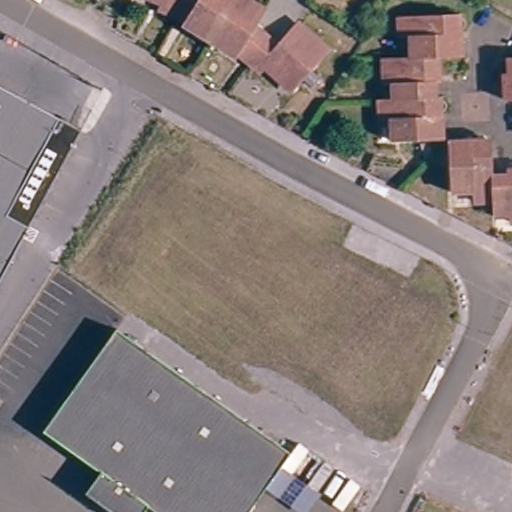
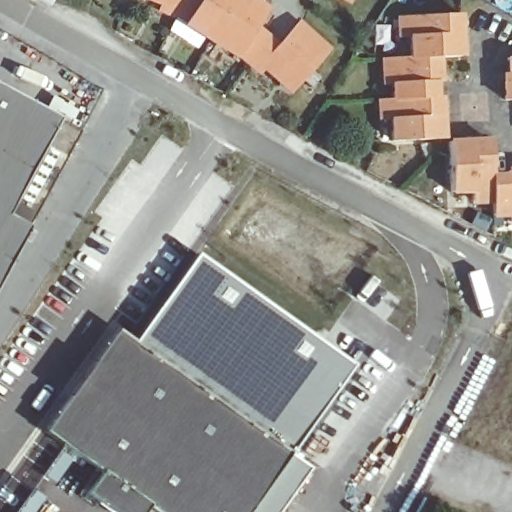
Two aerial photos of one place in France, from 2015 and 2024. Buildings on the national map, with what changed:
unchanged [(256,17),(283,38),(307,20),(327,43),(289,74),(265,51),(259,56),(239,41),(234,45),(187,16),(187,11),(162,0),(262,0),(266,2),(256,17)]
unchanged [(416,33),(405,34),(404,17),(464,13),(467,52),(444,53),(417,55),(416,33)]
unchanged [(444,92),(398,95),(397,80),(391,80),(389,56),(417,55),(444,53),(446,68),(442,69),(444,92)]
unchanged [(507,97),(506,77),(511,76),(509,53),(512,53),(512,97),(507,97)]
new [(56,124),(0,95),(0,87),(59,118),(56,124)]
unchanged [(448,92),(450,130),(400,134),(399,117),(389,118),(388,95),(398,95),(444,92),(448,92)]
unchanged [(75,135),(0,279),(0,95),(61,127),(75,135)]
unchanged [(494,146),(496,175),(499,202),(478,202),(477,191),(459,191),(457,142),(494,142),(494,146)]
unchanged [(499,214),(499,202),(496,175),(512,175),(512,214),(499,214)]
new [(354,366),(288,455),(309,469),(278,512),(247,512),(287,459),(131,346),(197,253),(354,366)]
unchanged [(43,433),(116,334),(129,344),(56,443),(43,433)]
unchanged [(247,512),(149,512),(147,510),(146,512),(105,512),(86,498),(101,477),(56,443),(129,344),(287,459),(247,512)]

